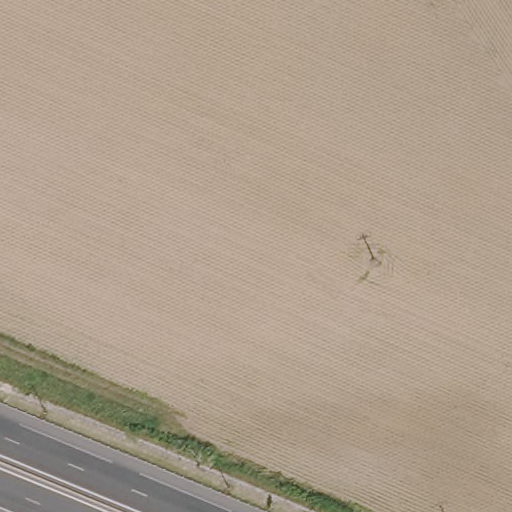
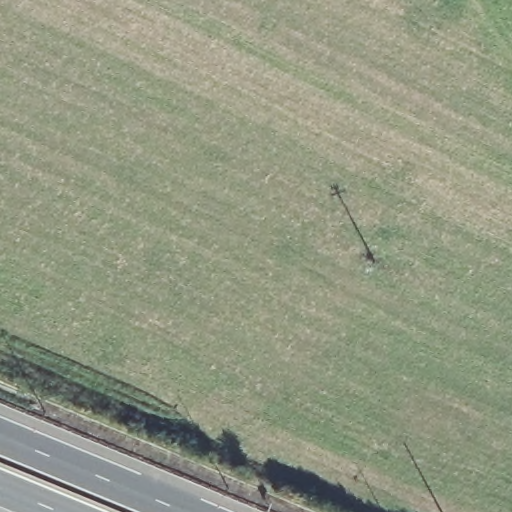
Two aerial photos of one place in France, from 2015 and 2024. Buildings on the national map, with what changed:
[]

